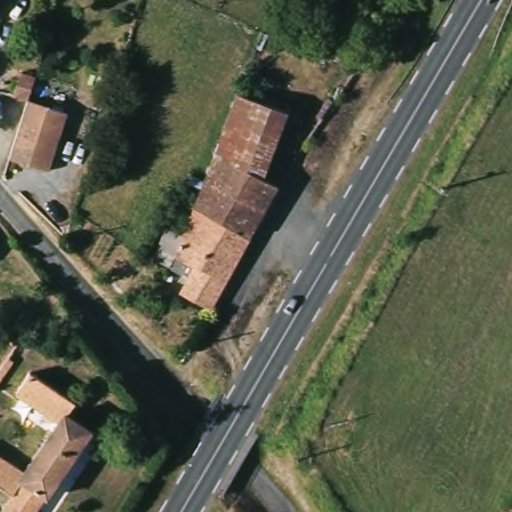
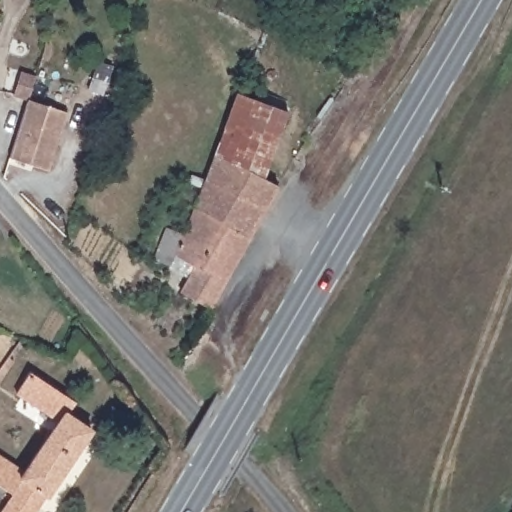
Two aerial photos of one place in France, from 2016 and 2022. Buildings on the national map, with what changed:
unchanged [(33,84),(29,100),(12,94),(20,71),(35,77),(34,81),(33,84)]
unchanged [(214,154),(233,93),(288,110),(270,182),(214,154)]
unchanged [(50,172),(9,158),(29,100),(70,114),(50,172)]
unchanged [(283,187),(216,310),(178,296),(185,278),(155,265),(162,227),(185,229),(214,154),(270,182),(283,187)]
unchanged [(61,423),(20,393),(34,374),(35,373),(66,394),(72,386),(81,392),(76,400),(78,402),(70,414),(94,431),(66,475),(54,492),(50,497),(25,481),(15,495),(10,492),(0,485),(0,456),(26,473),(61,423)]
unchanged [(10,492),(15,495),(25,481),(50,497),(39,512),(0,512),(0,504),(10,492)]

